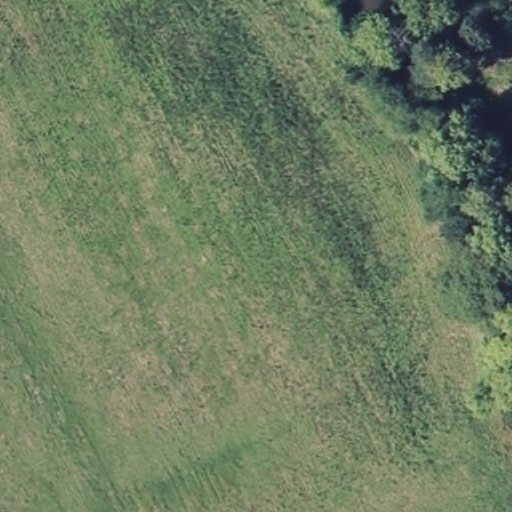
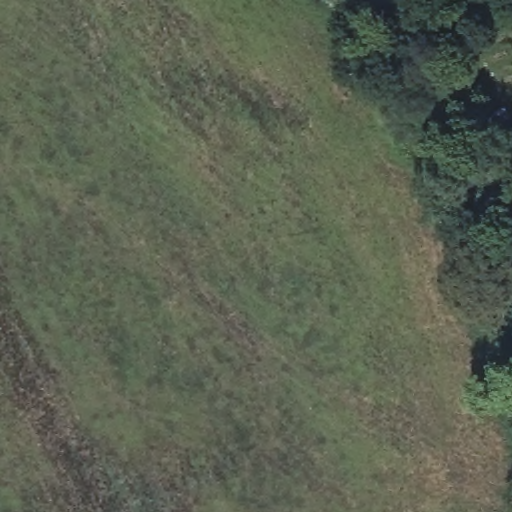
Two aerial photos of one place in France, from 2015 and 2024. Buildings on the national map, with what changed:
[]

